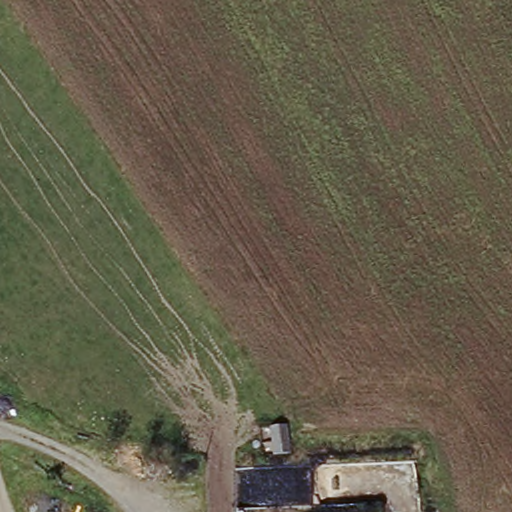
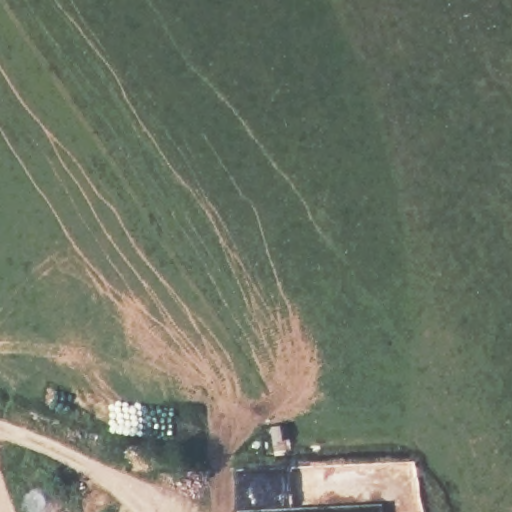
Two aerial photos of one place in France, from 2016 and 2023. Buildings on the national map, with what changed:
unchanged [(300,404),(302,434),(284,435),(282,406),(300,404)]

